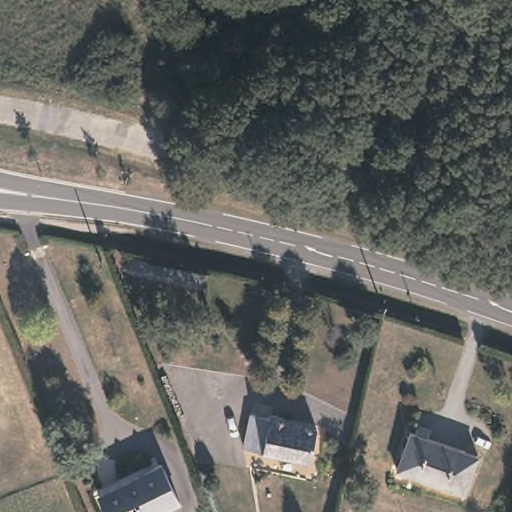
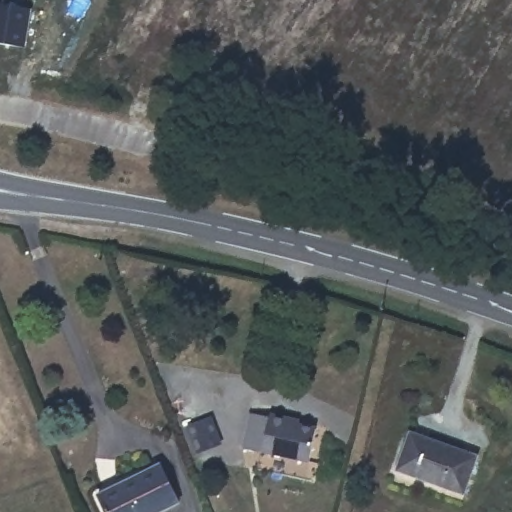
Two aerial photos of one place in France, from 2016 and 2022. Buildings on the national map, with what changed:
new [(0,43),(0,3),(32,9),(26,47),(0,43)]
unchanged [(309,460),(246,443),(254,412),(272,416),(273,411),(290,416),(302,419),(302,425),(317,428),(309,460)]
unchanged [(478,453),(466,492),(399,472),(412,431),(478,453)]
unchanged [(175,497),(147,512),(107,512),(97,493),(156,461),(175,497)]

